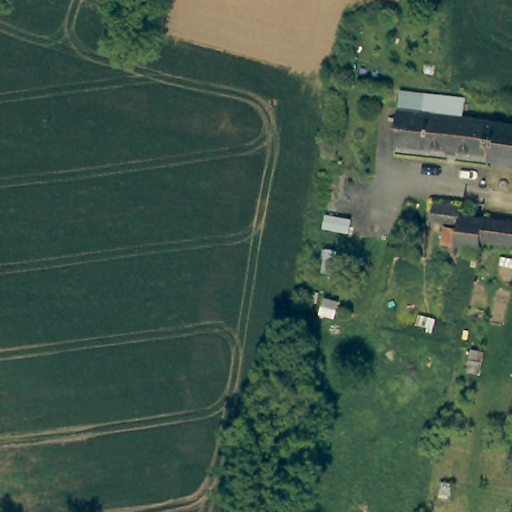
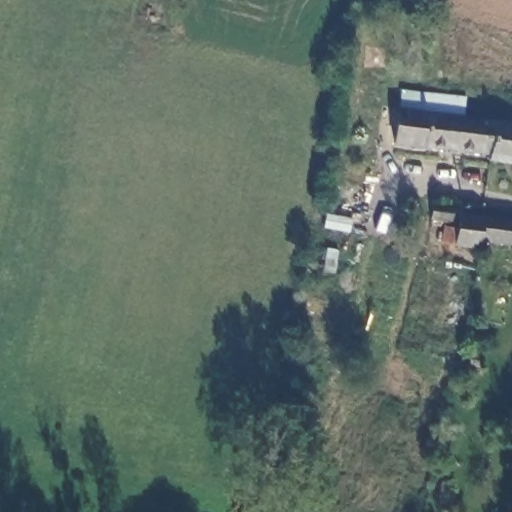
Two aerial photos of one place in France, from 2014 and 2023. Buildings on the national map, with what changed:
unchanged [(468,95),(466,113),(432,108),(402,103),(404,87),(468,95)]
unchanged [(432,108),(427,147),(396,143),(402,103),(432,108)]
unchanged [(494,158),(427,147),(432,108),(466,113),(497,118),(494,158)]
unchanged [(497,118),(512,120),(512,161),(494,158),(497,118)]
unchanged [(477,230),(474,230),(470,248),(442,243),(427,241),(431,224),(446,226),(447,219),(424,215),(429,195),(455,201),(455,207),(478,210),(511,213),(512,214),(512,241),(507,239),(477,230)]

